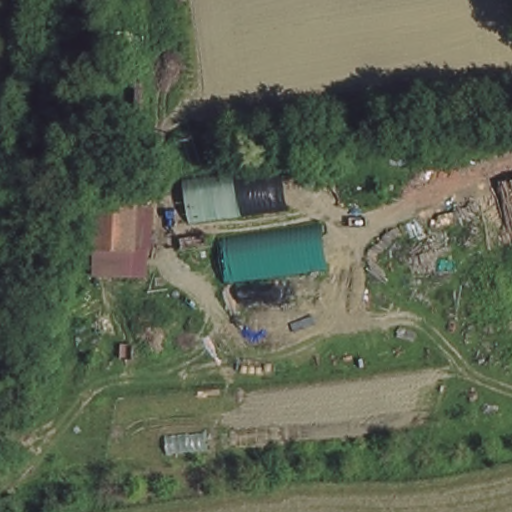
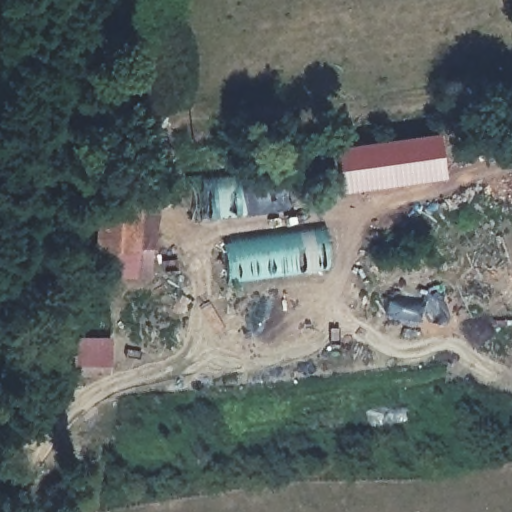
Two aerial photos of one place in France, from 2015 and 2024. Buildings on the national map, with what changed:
new [(336,144),(439,131),(445,176),(341,192),(336,144)]
unchanged [(192,223),(186,179),(286,166),(290,210),(192,223)]
unchanged [(153,276),(94,276),(100,197),(160,199),(153,276)]
unchanged [(330,269),(226,283),(220,239),(325,226),(330,269)]
new [(109,334),(112,372),(78,375),(75,337),(109,334)]

